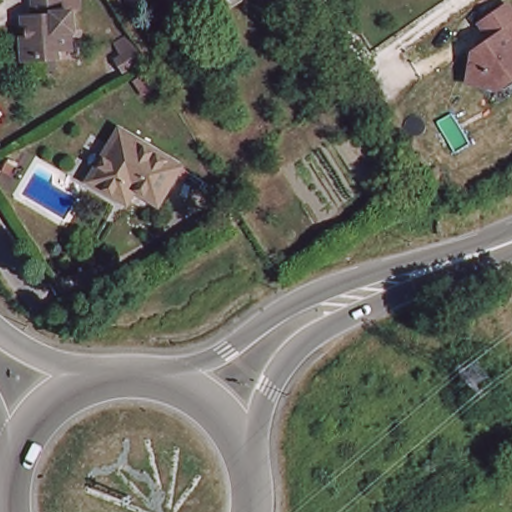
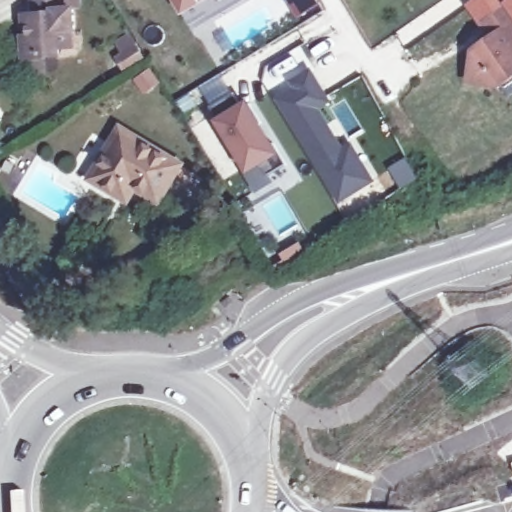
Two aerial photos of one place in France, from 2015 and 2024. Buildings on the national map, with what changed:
unchanged [(39,0),(70,0),(70,9),(78,9),(80,29),(76,30),(78,47),(63,48),(64,55),(29,59),(27,37),(33,36),(31,16),(40,15),(39,0)]
unchanged [(211,11),(208,7),(189,18),(181,5),(178,0),(229,0),(211,11)]
unchanged [(288,0),(316,0),(319,5),(299,17),(288,0)]
unchanged [(471,85),(477,55),(496,42),(484,26),(511,8),(512,9),(512,83),(501,91),(471,85)]
new [(162,83),(144,95),(120,65),(120,51),(115,42),(131,33),(151,67),(162,83)]
new [(294,87),(290,81),(311,67),(333,102),(322,109),(346,147),(353,142),(376,182),(340,205),(277,99),(294,87)]
new [(246,174),(213,121),(218,118),(211,107),(236,92),(243,104),(247,101),(281,156),(286,166),(271,175),(275,182),(257,193),(246,174)]
unchanged [(118,146),(126,133),(183,167),(179,172),(171,187),(163,199),(139,185),(133,199),(98,179),(118,146)]
new [(408,157),(421,178),(400,190),(387,168),(408,157)]

